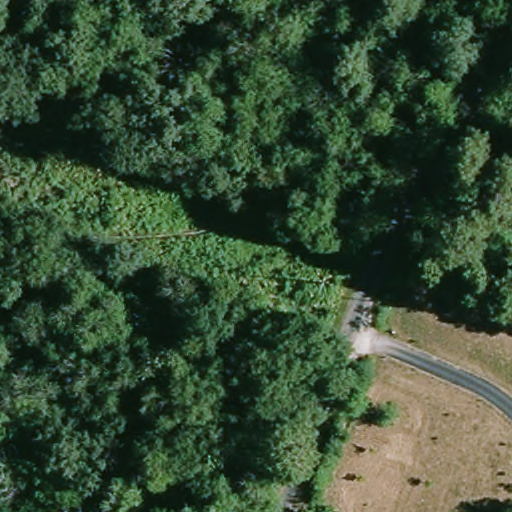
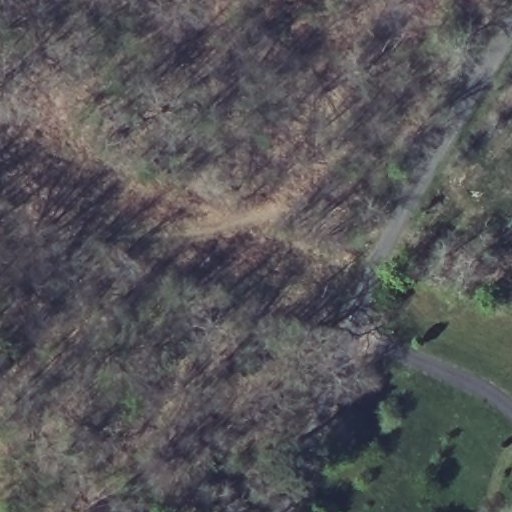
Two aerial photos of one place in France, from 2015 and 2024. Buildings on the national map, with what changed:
[]

